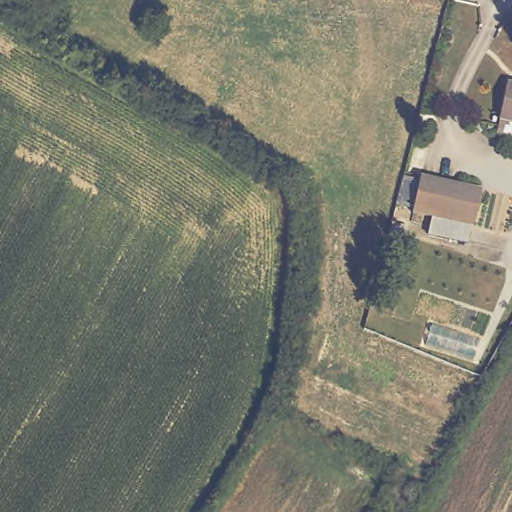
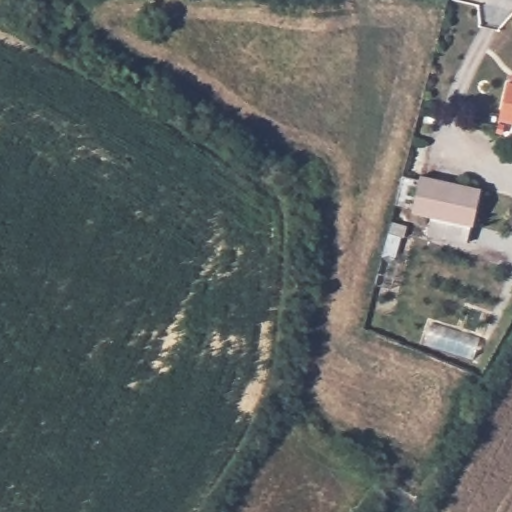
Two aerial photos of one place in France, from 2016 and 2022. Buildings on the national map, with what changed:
unchanged [(505,81),(512,82),(512,125),(497,122),(505,81)]
unchanged [(474,228),(413,214),(420,174),(483,189),(474,228)]

